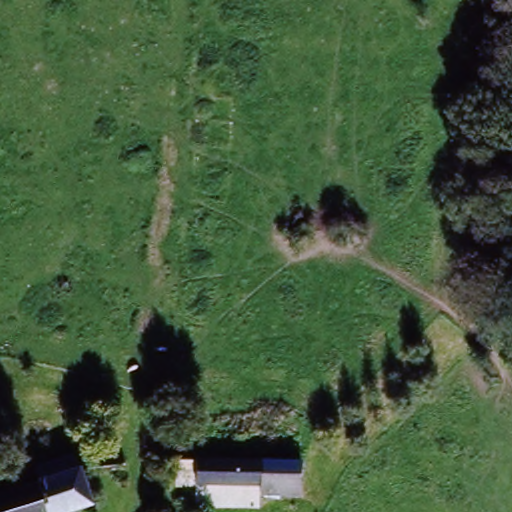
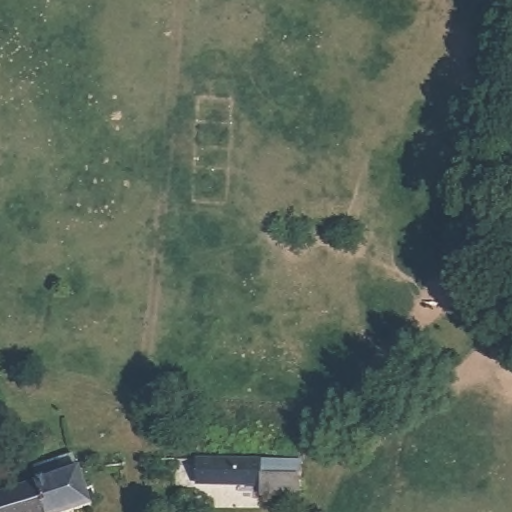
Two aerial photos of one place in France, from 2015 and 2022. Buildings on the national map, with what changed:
unchanged [(38,471),(36,466),(72,455),(91,509),(84,512),(0,512),(0,494),(12,490),(8,482),(38,471)]
unchanged [(179,483),(178,458),(301,456),(301,493),(260,494),(259,483),(179,483)]

